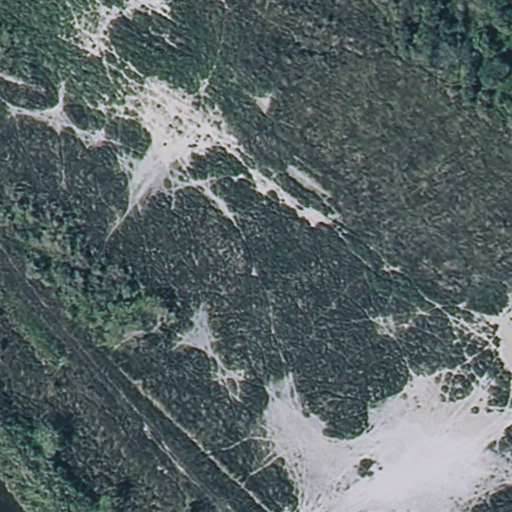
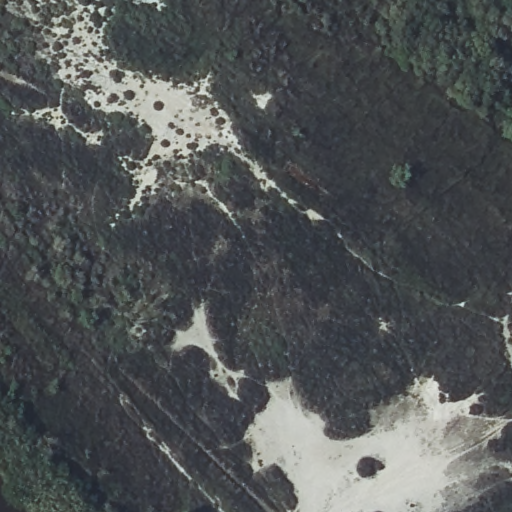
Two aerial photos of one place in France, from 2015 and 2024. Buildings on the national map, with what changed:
[]

